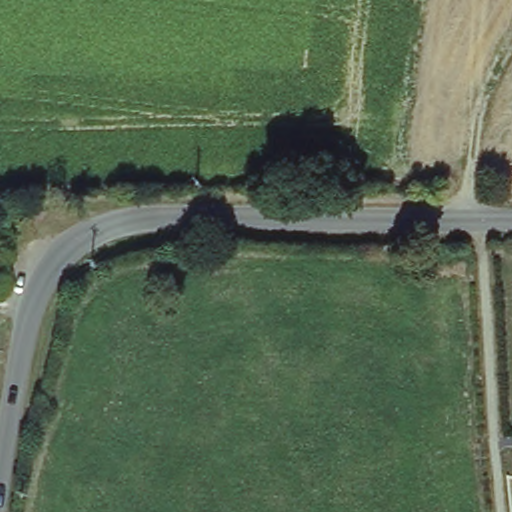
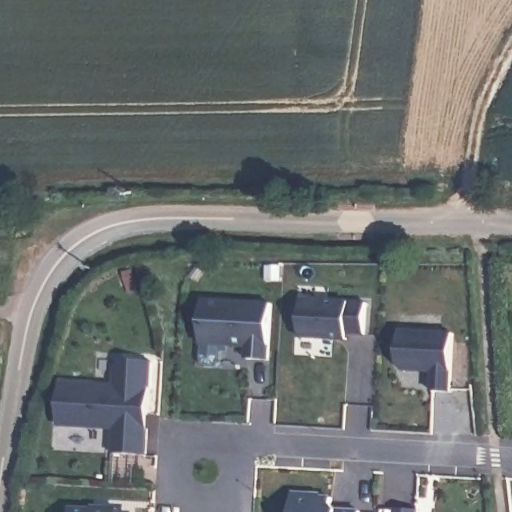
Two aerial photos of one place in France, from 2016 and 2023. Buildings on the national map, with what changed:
new [(270,292),(272,363),(248,363),(246,342),(204,342),(203,291),(270,292)]
new [(366,291),(367,330),(330,329),(330,342),(294,342),(293,292),(366,291)]
new [(450,317),(453,393),(429,395),(429,367),(397,368),(394,318),(450,317)]
new [(110,375),(114,347),(149,351),(143,452),(113,450),(114,423),(53,420),(59,372),(110,375)]
new [(279,480),(348,482),(348,512),(277,512),(279,480)]
new [(58,492),(129,496),(128,512),(57,512),(58,492)]
new [(412,511),(412,512),(387,512),(387,511),(412,511)]

